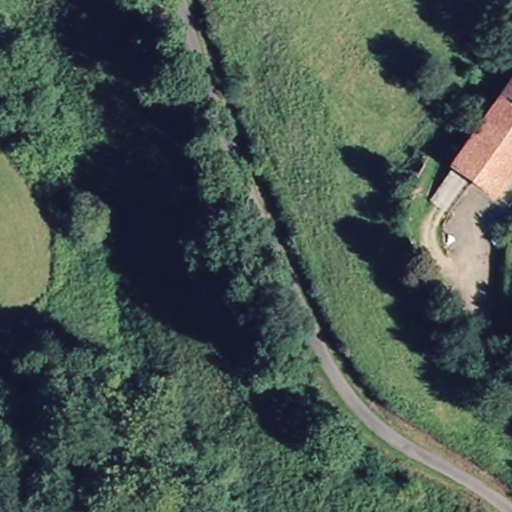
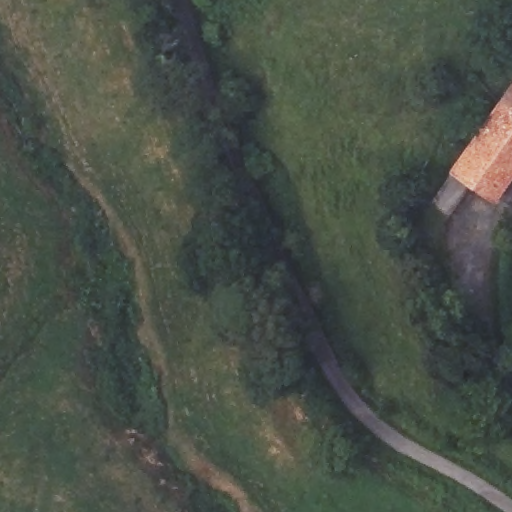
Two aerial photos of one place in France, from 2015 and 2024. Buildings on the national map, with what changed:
unchanged [(512,94),(512,179),(499,197),(459,169),(512,94)]

